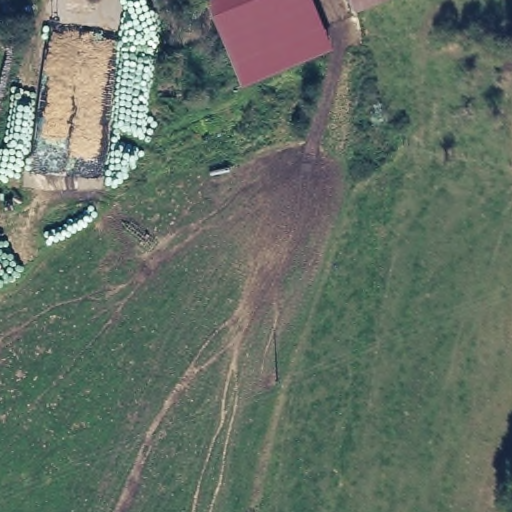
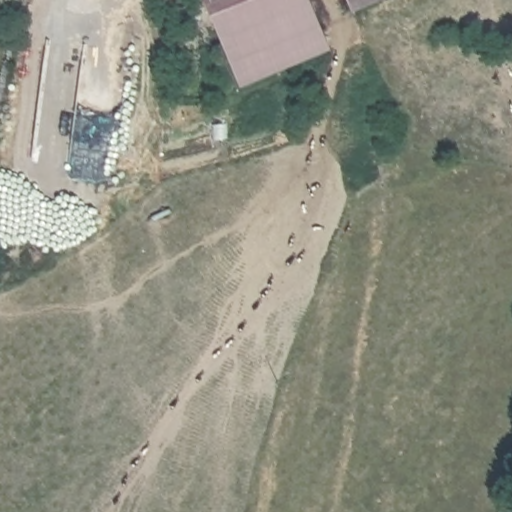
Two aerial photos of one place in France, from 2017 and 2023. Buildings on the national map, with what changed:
unchanged [(328,48),(237,85),(203,0),(310,0),(328,48)]
unchanged [(351,12),(346,0),(382,0),(351,12)]

